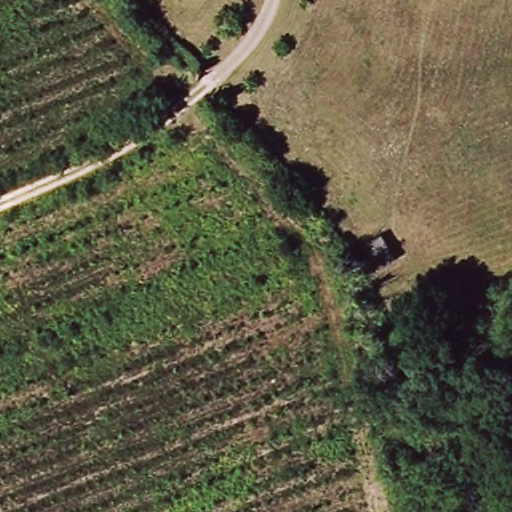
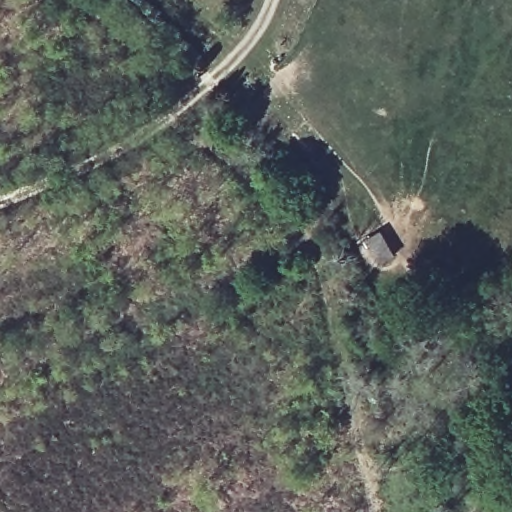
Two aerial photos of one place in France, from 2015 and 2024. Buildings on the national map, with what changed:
unchanged [(380,267),(366,242),(386,231),(400,257),(380,267)]

